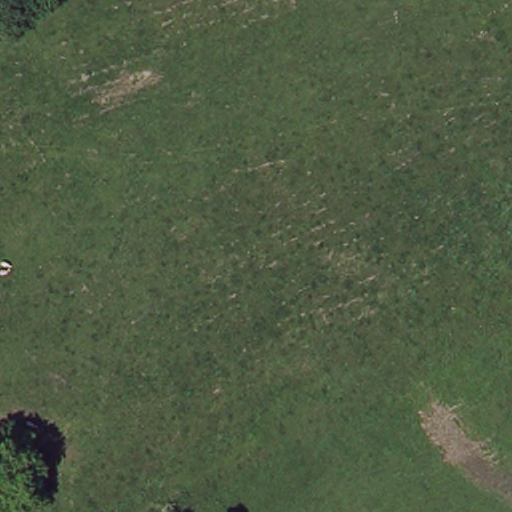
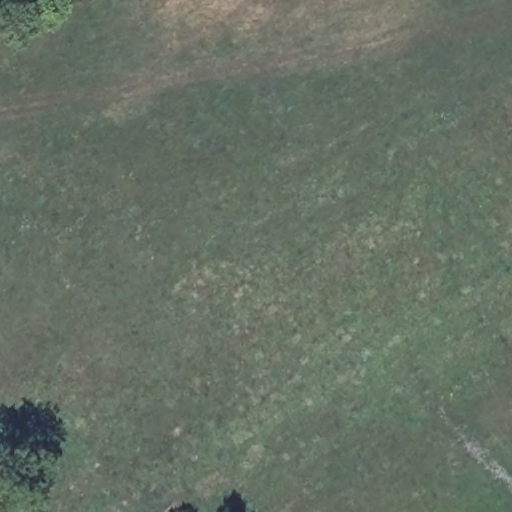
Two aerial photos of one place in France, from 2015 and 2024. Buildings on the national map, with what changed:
[]

